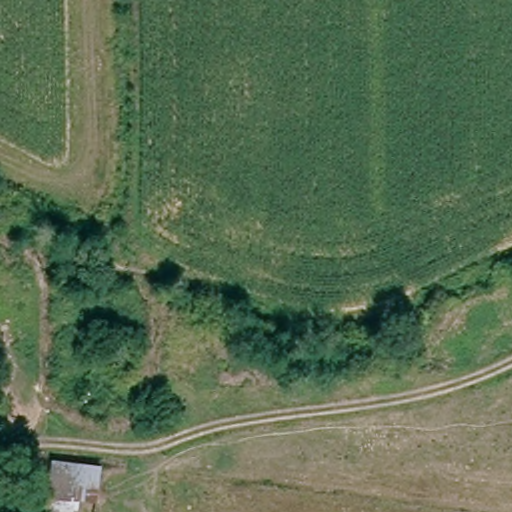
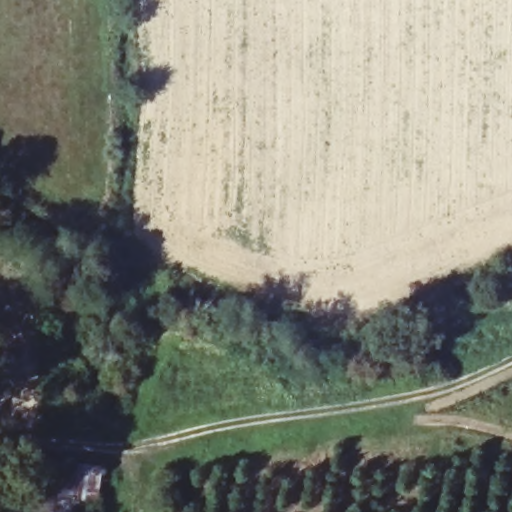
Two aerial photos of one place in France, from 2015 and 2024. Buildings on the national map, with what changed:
unchanged [(80,502),(79,511),(73,511),(73,512),(44,512),(50,458),(100,463),(95,503),(80,502)]

